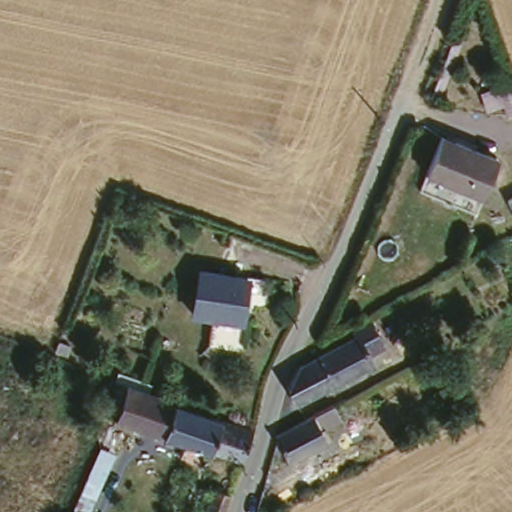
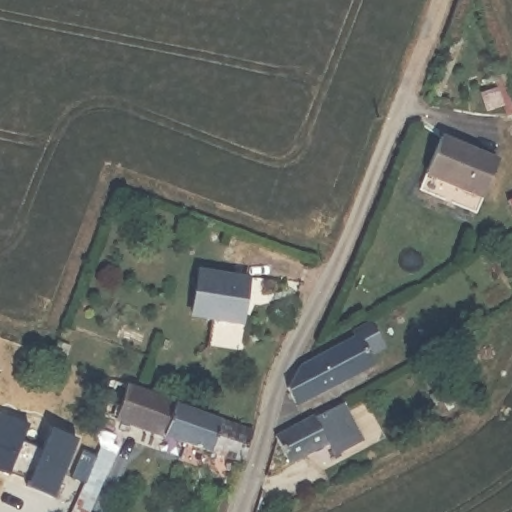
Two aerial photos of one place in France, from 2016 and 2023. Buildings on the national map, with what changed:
unchanged [(512,85),(512,115),(507,117),(493,77),(507,72),(512,85)]
unchanged [(446,127),(502,150),(480,203),(424,180),(446,127)]
unchanged [(510,204),(512,203),(512,208),(510,204)]
unchanged [(247,272),(243,318),(194,312),(200,266),(247,272)]
unchanged [(312,357),(361,332),(358,326),(374,317),(388,343),(379,348),(384,358),(301,402),(292,383),(304,362),(312,357)]
unchanged [(107,413),(122,377),(258,427),(244,462),(107,413)]
unchanged [(430,396),(448,386),(457,402),(446,408),(450,415),(443,418),(430,396)]
unchanged [(353,390),(363,408),(341,419),(347,432),(291,462),(276,436),(275,431),(353,390)]
new [(22,442),(42,450),(50,432),(75,442),(52,501),(26,492),(34,477),(10,468),(6,477),(0,474),(0,422),(2,416),(27,427),(22,442)]
unchanged [(223,478),(240,484),(229,512),(209,512),(223,478)]

